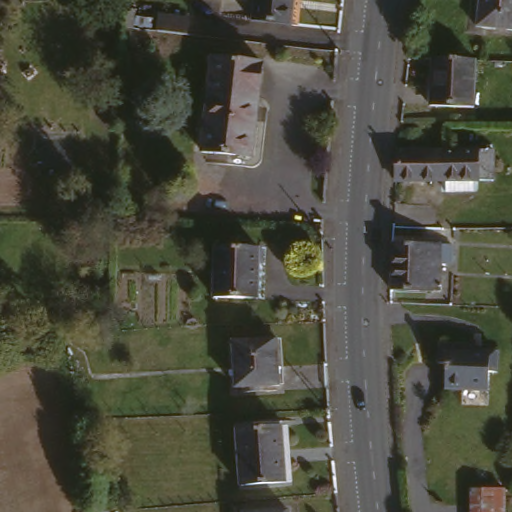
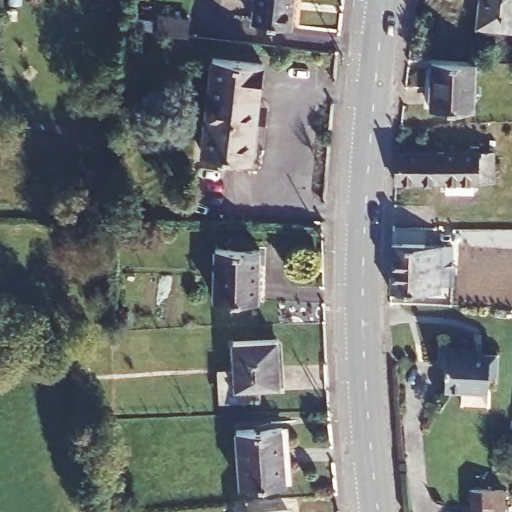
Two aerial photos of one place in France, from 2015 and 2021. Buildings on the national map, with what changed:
unchanged [(300,0),(297,23),(255,17),(258,0),(300,0)]
unchanged [(482,22),(484,0),(512,0),(512,25),(482,22)]
unchanged [(171,16),(203,20),(202,34),(169,31),(171,16)]
unchanged [(204,143),(196,142),(206,50),(259,56),(254,100),(266,102),(259,161),(203,154),(204,143)]
unchanged [(476,110),(432,108),(434,61),(478,63),(476,110)]
unchanged [(444,191),(444,180),(438,180),(438,148),(506,147),(506,178),(473,179),(472,190),(444,191)]
unchanged [(393,180),(396,148),(438,148),(438,180),(393,180)]
unchanged [(454,238),(453,257),(442,257),(441,285),(391,283),(395,236),(454,238)]
unchanged [(221,245),(263,246),(261,296),(219,294),(221,245)]
unchanged [(277,335),(283,380),(238,385),(232,340),(277,335)]
unchanged [(498,349),(494,391),(444,389),(446,345),(498,349)]
unchanged [(286,424),(293,479),(246,486),(238,430),(286,424)]
unchanged [(103,470),(108,508),(93,511),(88,472),(103,470)]
unchanged [(504,512),(472,512),(473,486),(506,487),(504,512)]

